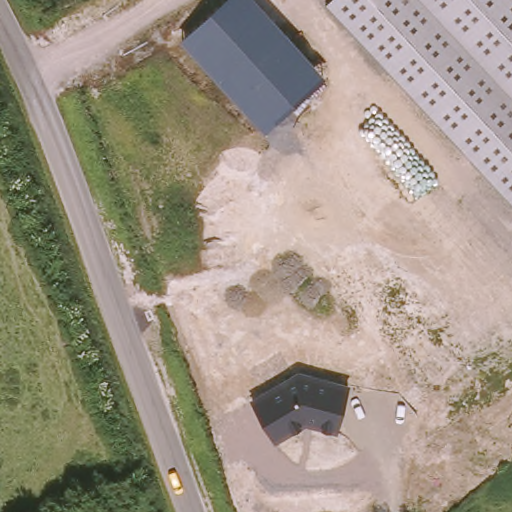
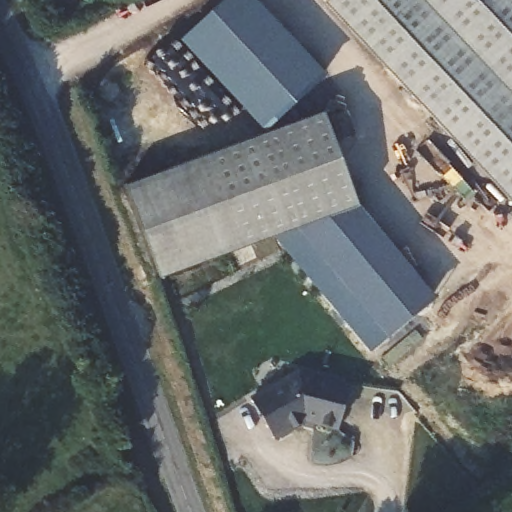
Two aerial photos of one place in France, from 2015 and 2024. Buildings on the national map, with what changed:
unchanged [(180,40),(222,0),(255,0),(325,75),(265,132),(180,40)]
unchanged [(326,3),(329,0),(512,0),(512,201),(326,3)]
new [(159,277),(125,186),(322,114),(356,205),(159,277)]
new [(356,205),(436,298),(371,353),(272,236),(356,205)]
unchanged [(296,368),(350,380),(337,431),(304,421),(274,439),(250,398),(296,368)]

